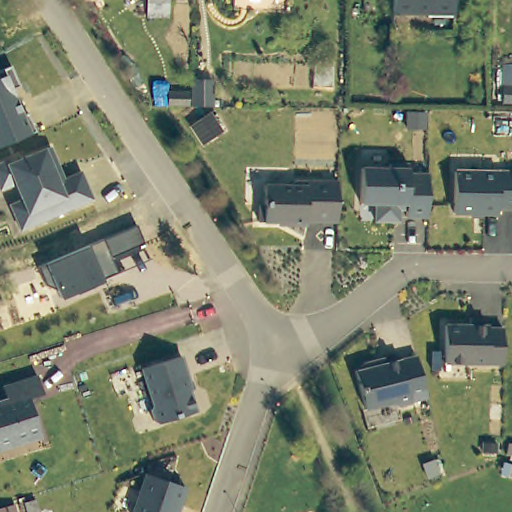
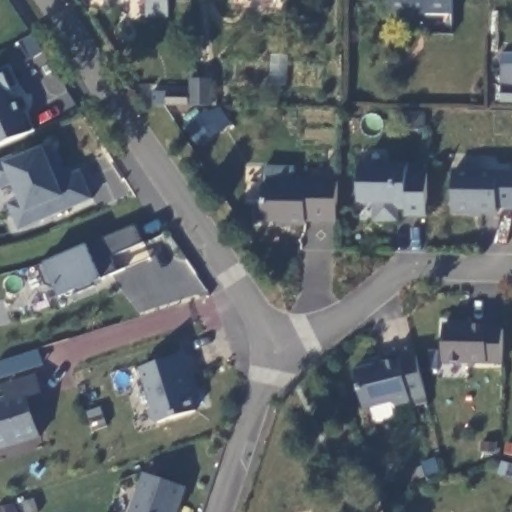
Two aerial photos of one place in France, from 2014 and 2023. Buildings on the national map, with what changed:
unchanged [(168,1),(150,1),(150,0),(168,0),(168,1)]
unchanged [(391,0),(452,0),(452,15),(390,14),(391,0)]
unchanged [(512,102),(501,102),(502,64),(512,64),(512,102)]
unchanged [(9,66),(17,87),(10,90),(20,115),(25,114),(33,132),(0,146),(0,70),(9,66)]
unchanged [(165,94),(186,94),(186,106),(165,106),(165,94)]
unchanged [(6,205),(18,200),(12,184),(0,189),(0,162),(12,157),(14,161),(47,148),(56,171),(49,174),(53,183),(77,173),(89,200),(37,222),(16,231),(6,205)]
unchanged [(389,167),(389,163),(408,164),(408,173),(428,173),(427,216),(406,215),(406,208),(399,208),(398,220),(375,220),(375,202),(360,202),(361,166),(389,167)]
unchanged [(497,212),(453,211),(454,170),(512,171),(512,207),(497,206),(497,212)]
unchanged [(264,184),(289,185),(294,180),(307,180),(338,180),(338,190),(337,221),(306,220),(306,225),(287,224),(288,221),(258,221),(259,204),(264,204),(264,184)]
unchanged [(46,263),(87,246),(136,225),(144,243),(110,257),(115,273),(101,280),(103,283),(77,293),(76,291),(59,298),(55,288),(44,283),(37,267),(46,263)]
unchanged [(502,343),(502,362),(444,361),(444,323),(488,325),(488,327),(503,327),(502,343)]
unchanged [(410,400),(409,401),(397,404),(391,400),(366,407),(364,407),(354,368),(361,363),(371,360),(372,365),(416,354),(425,392),(426,396),(410,400)]
unchanged [(158,422),(154,420),(150,409),(153,405),(141,368),(181,355),(192,388),(189,390),(196,411),(158,422)]
unchanged [(0,449),(0,400),(5,398),(2,386),(8,385),(36,375),(42,393),(28,398),(38,431),(40,436),(0,449)]
unchanged [(186,487),(180,505),(177,504),(175,512),(132,512),(146,473),(186,487)]

